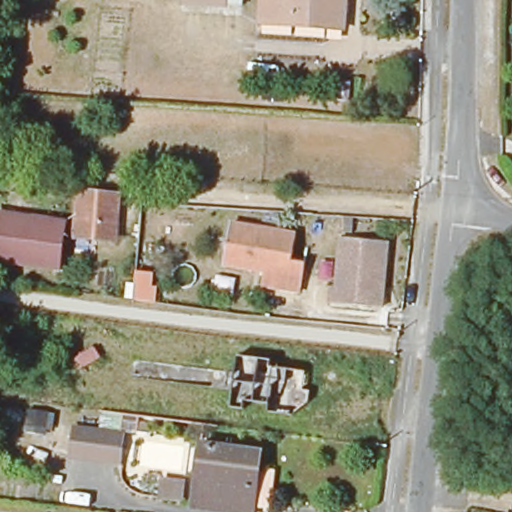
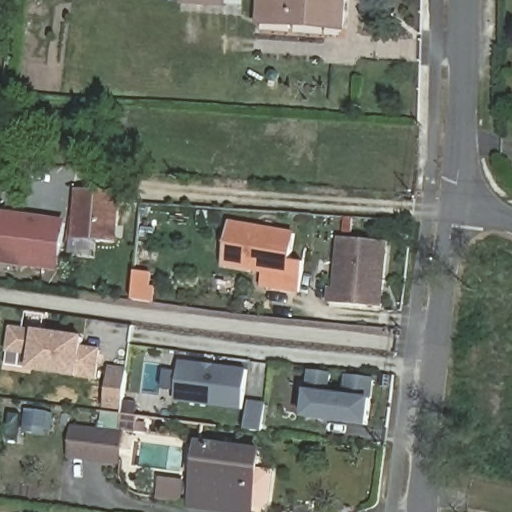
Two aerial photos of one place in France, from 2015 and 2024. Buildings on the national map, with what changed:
unchanged [(184,0),(244,0),(244,6),(226,6),(183,4),(184,0)]
unchanged [(262,0),(346,0),(345,29),(260,24),(262,0)]
unchanged [(119,193),(115,242),(96,240),(74,239),(78,190),(119,193)]
unchanged [(62,238),(61,261),(60,271),(21,268),(21,264),(0,262),(0,221),(2,219),(64,224),(62,238)]
unchanged [(296,234),(291,261),(304,263),(299,292),(262,286),(264,272),(224,265),(231,224),(296,234)]
unchanged [(390,242),(382,308),(331,302),(333,286),(338,287),(344,237),(390,242)]
unchanged [(151,271),(149,285),(153,285),(151,301),(131,298),(134,271),(134,270),(151,271)]
new [(98,380),(80,377),(31,370),(32,356),(7,353),(11,326),(36,329),(87,336),(85,345),(103,350),(98,380)]
new [(244,409),(176,402),(181,361),(248,368),(244,409)]
demolished [(223,395),(225,377),(235,378),(237,361),(272,365),(271,372),(287,374),(287,375),(304,376),(303,395),(309,396),(308,407),(292,420),(268,417),(269,410),(246,407),(244,414),(230,412),(232,396),(223,395)]
new [(110,370),(127,372),(125,392),(123,410),(106,407),(108,390),(110,370)]
new [(374,399),(370,426),(304,418),(307,391),(308,371),(333,373),(331,393),(343,395),(347,376),(376,378),(374,399)]
unchanged [(72,456),(76,430),(121,435),(117,462),(72,456)]
unchanged [(191,495),(196,454),(255,461),(249,512),(242,512),(202,506),(203,496),(191,495)]
unchanged [(159,498),(161,478),(184,481),(182,501),(159,498)]

